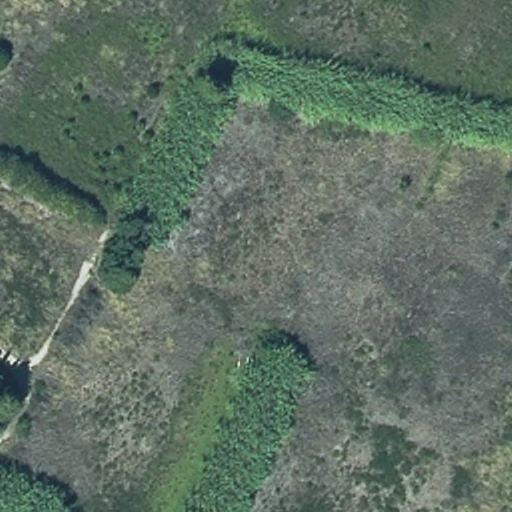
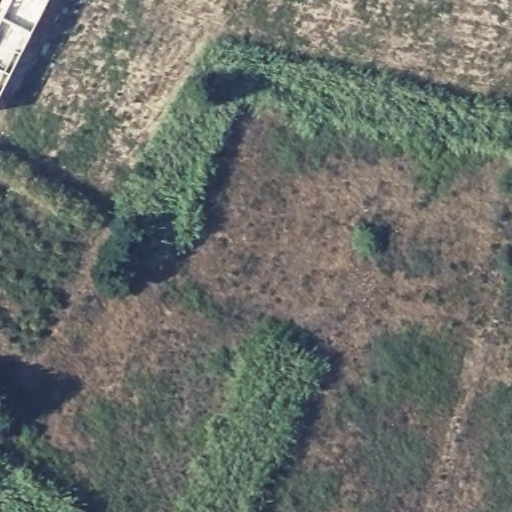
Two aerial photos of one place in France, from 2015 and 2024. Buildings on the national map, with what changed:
new [(2,1),(3,0),(49,0),(42,15),(13,69),(0,60),(0,14),(5,4),(2,1)]

